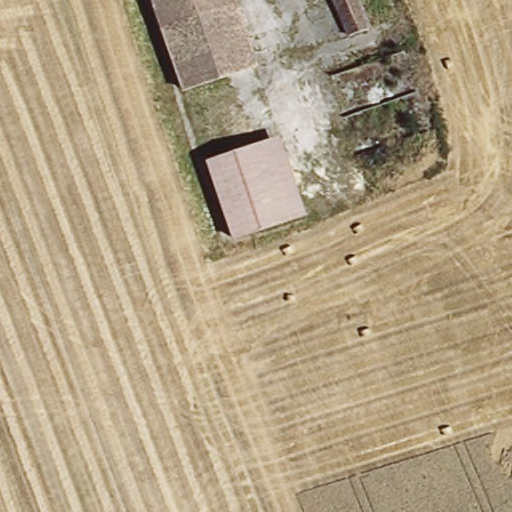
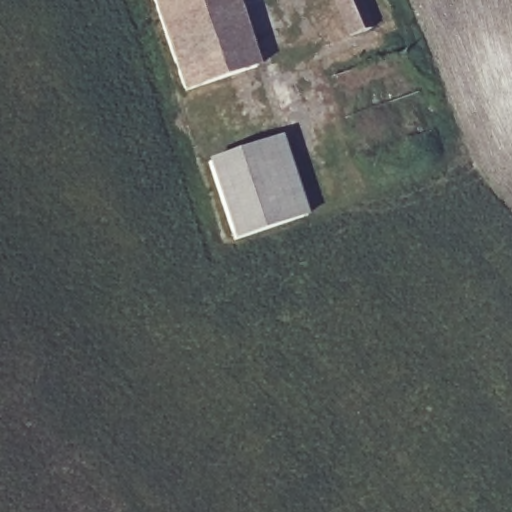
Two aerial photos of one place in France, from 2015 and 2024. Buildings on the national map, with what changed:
unchanged [(235,0),(256,71),(183,94),(154,0),(235,0)]
unchanged [(349,39),(334,0),(358,0),(371,32),(349,39)]
unchanged [(307,220),(234,244),(209,167),(280,143),(307,220)]

